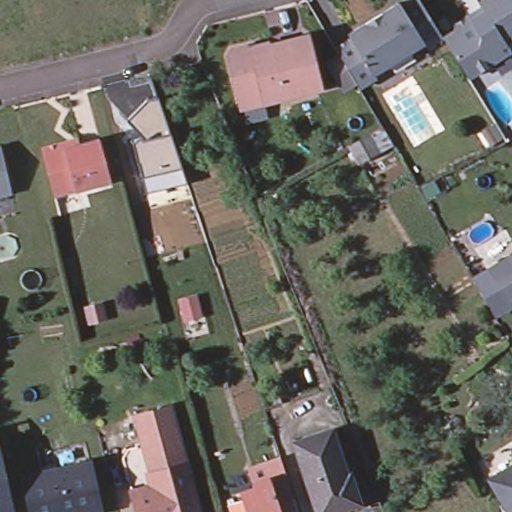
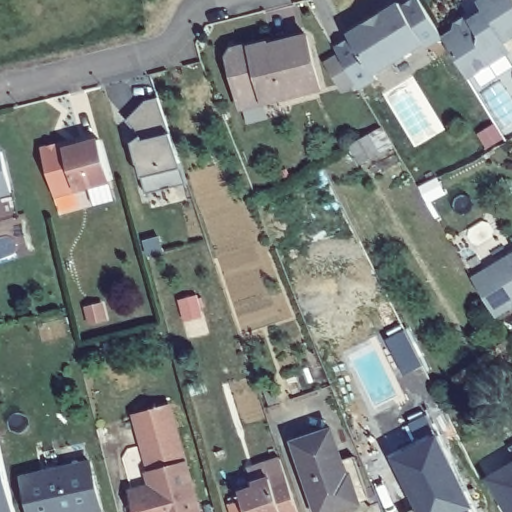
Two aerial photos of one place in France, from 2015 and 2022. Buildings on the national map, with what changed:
unchanged [(424,45),(374,75),(377,79),(360,89),(335,49),(352,39),(349,34),(369,23),(412,0),(420,0),(425,10),(444,39),(427,49),(424,45)]
unchanged [(457,24),(464,20),(470,21),(485,14),(479,4),(486,0),(512,0),(512,38),(505,42),(510,52),(468,79),(444,39),(456,31),(457,24)]
unchanged [(243,106),(232,65),(237,56),(250,53),(257,56),(274,52),(312,42),(325,96),(269,110),(245,116),(243,106)]
unchanged [(359,165),(350,150),(385,130),(394,146),(359,165)]
unchanged [(108,178),(52,193),(42,152),(45,146),(55,144),(62,147),(95,138),(108,178)]
unchanged [(160,145),(167,168),(142,175),(136,152),(160,145)]
unchanged [(4,150),(13,190),(0,193),(0,148),(4,150)]
unchanged [(487,272),(512,257),(512,306),(508,305),(487,272)]
unchanged [(127,489),(152,481),(148,469),(141,442),(132,412),(167,402),(198,512),(134,512),(127,489)]
new [(417,444),(409,425),(426,417),(471,510),(467,512),(415,512),(387,457),(417,444)]
unchanged [(332,512),(311,512),(287,443),(322,431),(331,460),(347,454),(357,481),(347,485),(353,505),(332,512)]
unchanged [(16,512),(0,512),(0,443),(16,512)]
unchanged [(223,505),(236,500),(234,492),(251,486),(250,482),(250,481),(245,466),(275,456),(280,471),(294,512),(226,512),(223,505)]
unchanged [(99,508),(84,512),(30,512),(20,473),(87,458),(99,508)]
unchanged [(512,512),(507,512),(487,480),(512,465),(512,512)]

